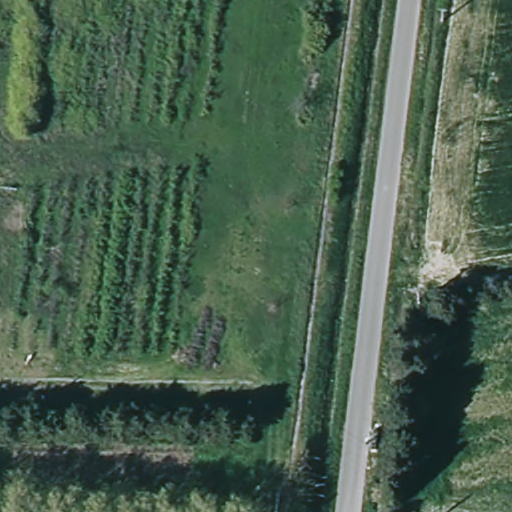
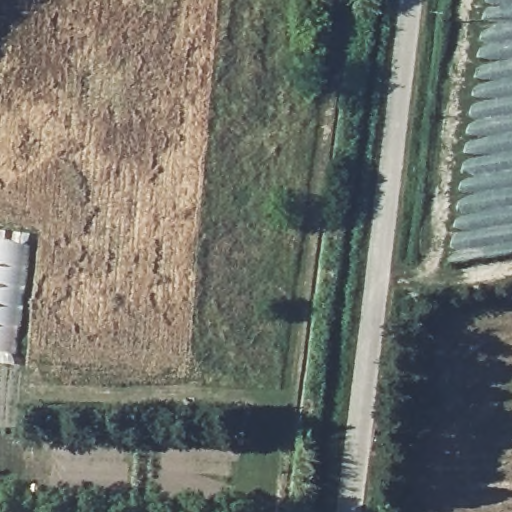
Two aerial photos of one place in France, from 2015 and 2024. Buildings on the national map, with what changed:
new [(16,358),(0,356),(0,244),(29,248),(16,358)]

